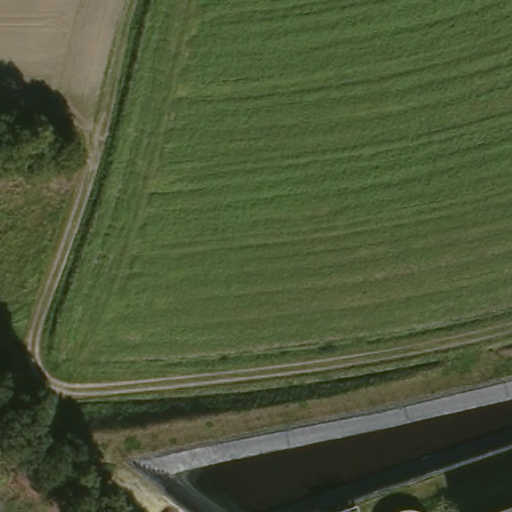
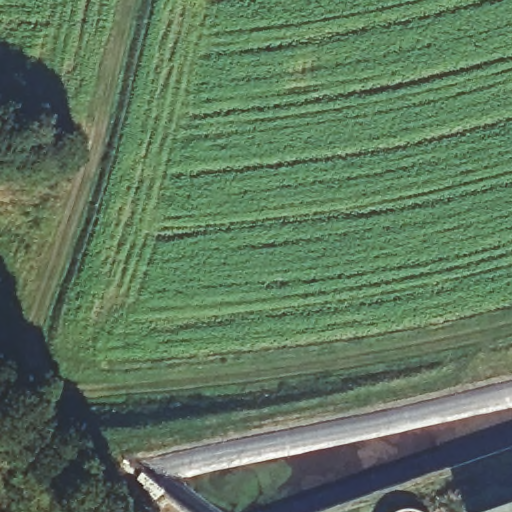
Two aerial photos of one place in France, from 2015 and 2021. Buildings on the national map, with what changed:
unchanged [(503,512),(512,509),(512,512),(503,512)]

